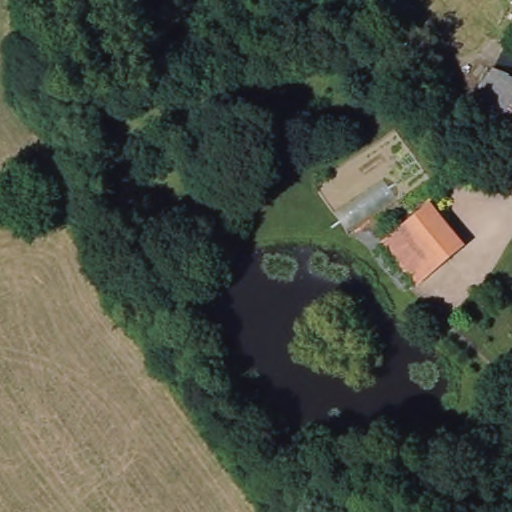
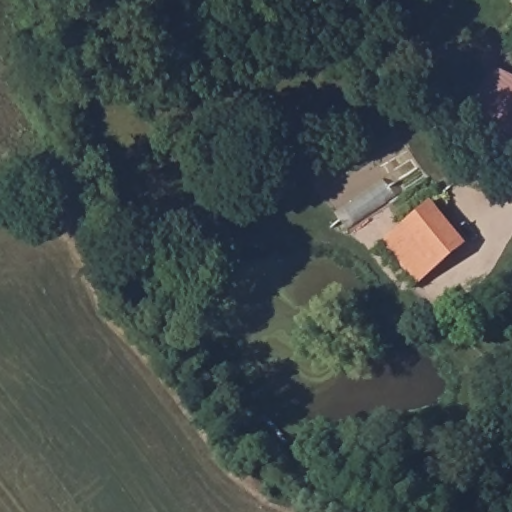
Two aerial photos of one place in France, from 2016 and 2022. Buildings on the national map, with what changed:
unchanged [(471,104),(498,67),(512,74),(512,133),(490,117),(471,104)]
unchanged [(383,244),(428,205),(464,247),(420,285),(383,244)]

